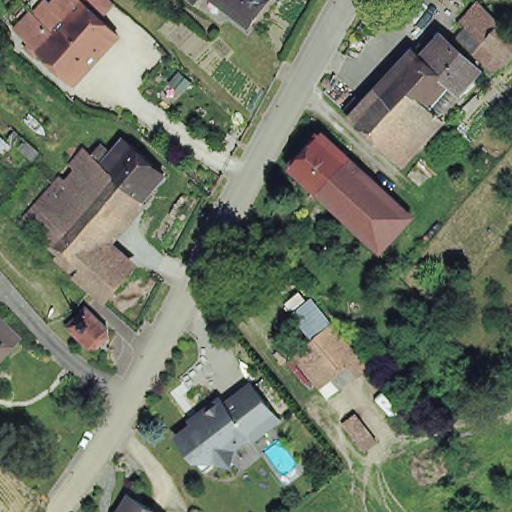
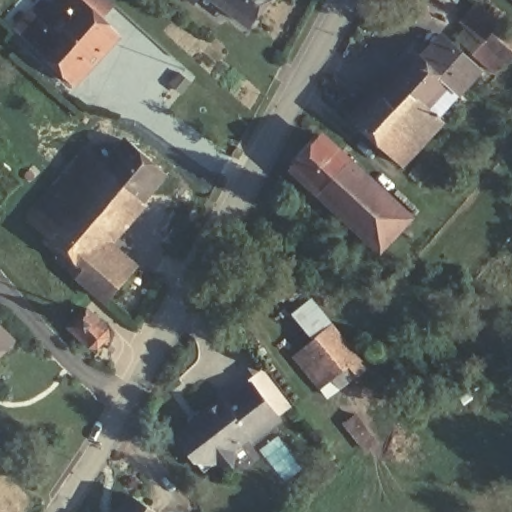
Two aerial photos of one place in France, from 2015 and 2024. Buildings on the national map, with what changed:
unchanged [(32,47),(35,44),(22,31),(37,15),(51,0),(70,17),(85,1),(85,0),(112,0),(117,5),(105,19),(122,36),(77,84),(44,52),(40,56),(35,51),(32,47)]
unchanged [(205,0),(222,0),(215,9),(205,0)]
unchanged [(238,0),(267,0),(256,14),(238,0)]
unchanged [(510,0),(512,0),(512,1),(510,0)]
unchanged [(466,26),(482,7),(497,20),(512,35),(512,67),(495,75),(479,59),(490,47),(480,38),(466,26)]
unchanged [(437,70),(457,47),(459,49),(462,46),(467,50),(464,54),(475,64),(455,87),(437,106),(442,111),(437,117),(398,79),(421,56),(437,70)]
unchanged [(391,155),(352,119),(327,97),(337,81),(361,102),(369,110),(398,79),(437,117),(446,126),(417,157),(407,169),(391,155)]
unchanged [(292,171),(320,140),(347,165),(318,196),(292,171)]
unchanged [(70,256),(32,221),(91,154),(97,147),(102,151),(95,157),(115,175),(147,205),(105,255),(81,279),(63,264),(70,256)]
unchanged [(147,205),(115,175),(138,150),(170,180),(147,205)]
unchanged [(351,227),(318,196),(347,165),(380,195),(351,227)]
unchanged [(380,254),(351,227),(380,195),(410,222),(380,254)]
unchanged [(133,281),(110,306),(81,279),(105,255),(133,281)]
unchanged [(66,328),(83,311),(107,333),(108,341),(97,352),(90,352),(66,328)]
unchanged [(0,362),(0,318),(22,340),(0,362)]
unchanged [(334,320),(364,357),(315,390),(291,353),(334,320)]
unchanged [(225,400),(252,381),(276,411),(264,421),(268,426),(253,437),(250,432),(235,443),(233,462),(195,456),(179,434),(195,422),(190,417),(199,409),(220,393),(225,400)]
unchanged [(135,491),(170,512),(169,512),(122,512),(135,491)]

